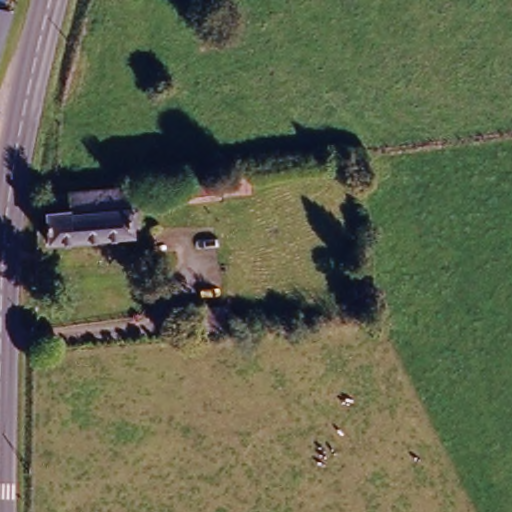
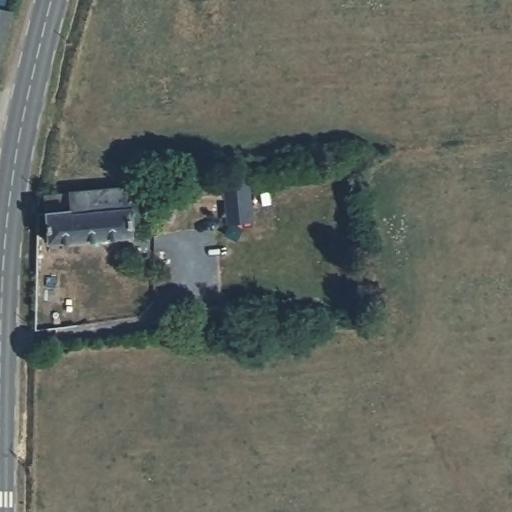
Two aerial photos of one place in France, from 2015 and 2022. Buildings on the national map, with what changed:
unchanged [(6,38),(0,60),(0,0),(7,0),(6,3),(15,8),(6,38)]
unchanged [(278,189),(172,200),(170,182),(275,168),(278,189)]
unchanged [(130,181),(137,233),(26,249),(20,198),(130,181)]
unchanged [(200,331),(170,336),(165,308),(197,303),(200,331)]

